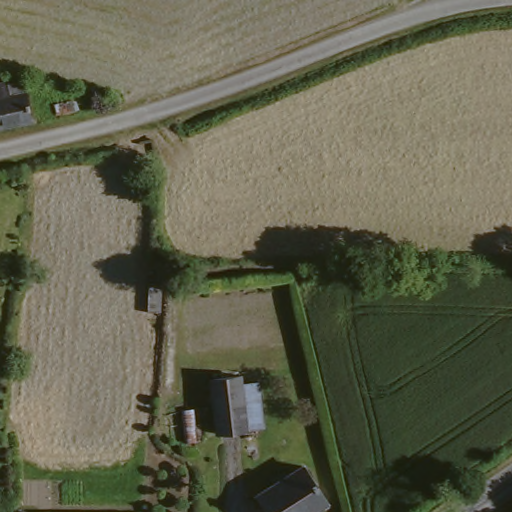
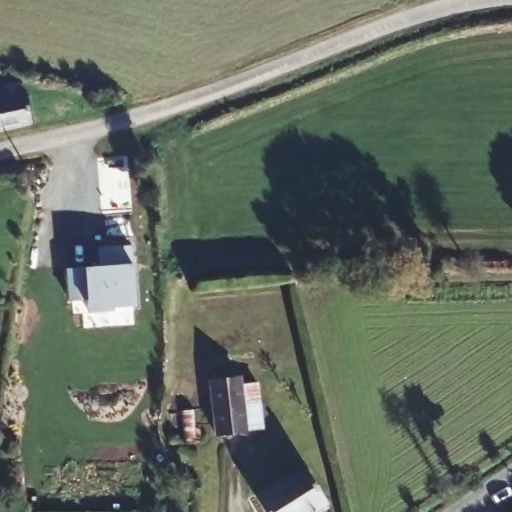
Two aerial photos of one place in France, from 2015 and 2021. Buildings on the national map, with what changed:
unchanged [(11,83),(14,86),(29,83),(37,125),(5,131),(0,132),(0,84),(11,83)]
new [(87,267),(87,271),(94,270),(94,266),(101,266),(99,248),(131,246),(136,304),(114,305),(114,311),(89,312),(89,298),(70,300),(69,268),(87,267)]
unchanged [(229,440),(222,386),(251,382),(258,437),(229,440)]
unchanged [(262,499),(307,467),(331,502),(316,512),(271,512),(262,499)]

